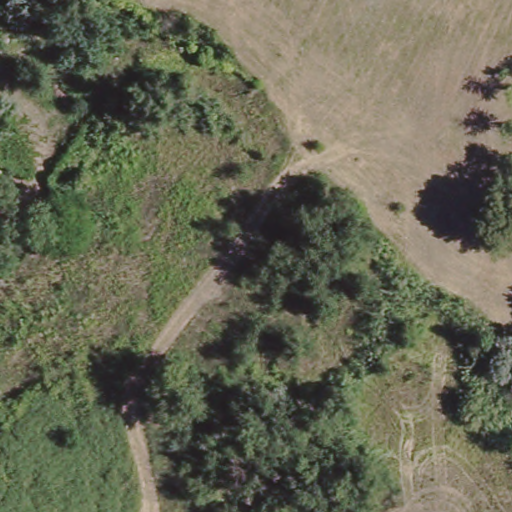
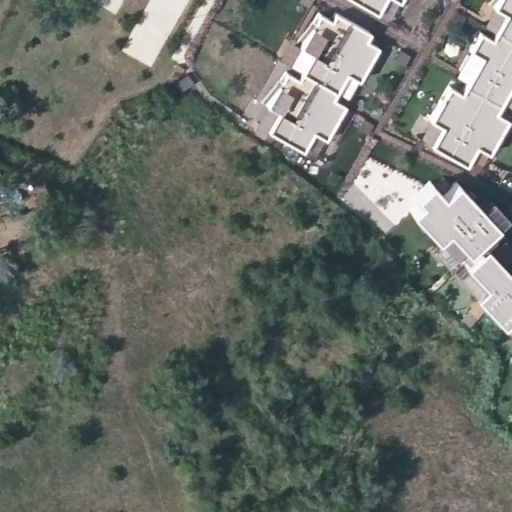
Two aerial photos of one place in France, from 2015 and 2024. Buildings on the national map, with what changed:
new [(360,0),(384,0),(378,10),(360,0)]
new [(485,58),(473,51),(483,33),(495,40),(509,15),(496,9),(501,0),(512,0),(512,93),(501,113),(512,119),(512,121),(495,154),(483,147),(473,166),(437,146),(447,129),(435,121),(454,88),(466,95),(485,58)]
new [(286,69),(298,75),(311,51),(300,43),(319,10),(331,16),(335,9),(370,29),(366,36),(378,44),(359,77),(346,70),(333,95),(344,101),(326,136),(314,128),(303,147),(268,128),(279,109),(266,102),(286,69)]
new [(435,209),(428,202),(443,189),(455,202),(469,190),(507,233),(497,241),(477,258),(473,253),(457,236),(447,245),(423,219),(435,209)]
new [(473,253),(477,258),(497,241),(512,259),(512,268),(497,251),(482,264),(477,269),(467,257),(473,253)]
new [(497,251),(512,268),(512,322),(491,297),(502,287),(482,264),(497,251)]

